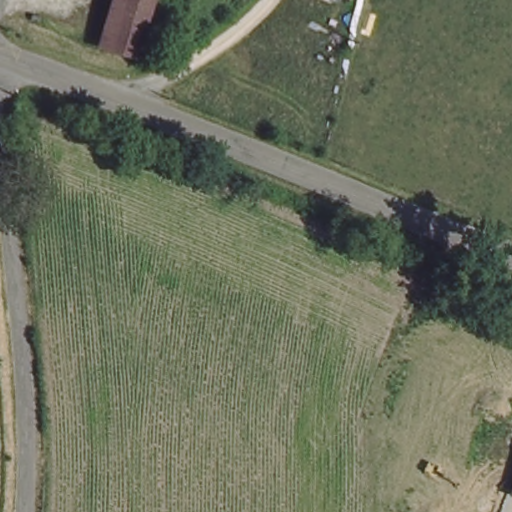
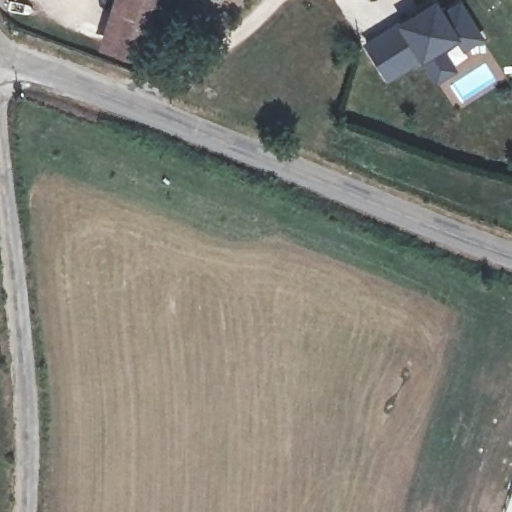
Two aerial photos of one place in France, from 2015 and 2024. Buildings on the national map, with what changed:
unchanged [(149,0),(138,55),(107,46),(117,0),(149,0)]
new [(436,78),(427,63),(422,55),(387,75),(367,40),(436,0),(444,13),(461,3),(481,37),(463,47),(456,34),(439,45),(444,53),(453,68),(436,78)]

